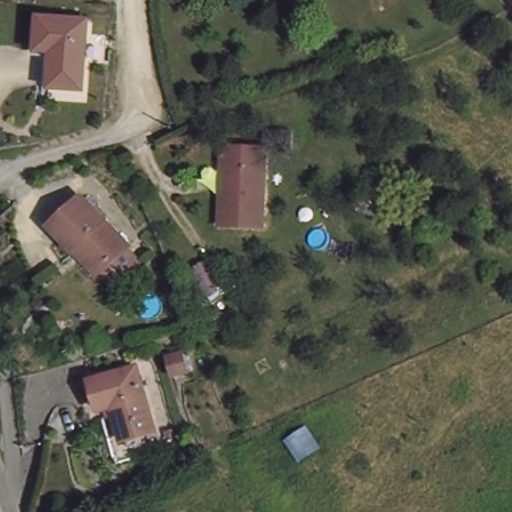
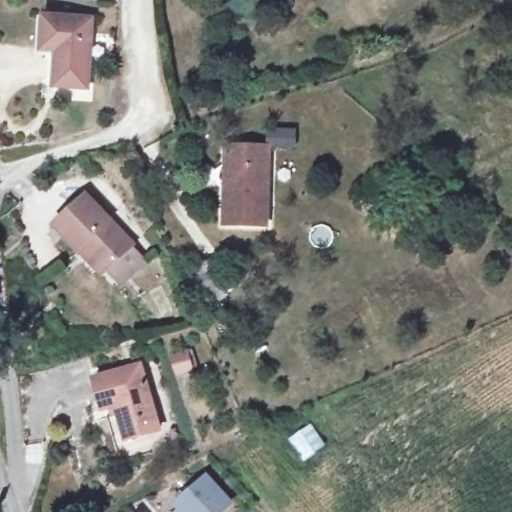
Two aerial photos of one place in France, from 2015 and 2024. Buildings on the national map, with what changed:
unchanged [(85,28),(82,94),(52,91),(55,57),(38,55),(41,25),(85,28)]
unchanged [(291,147),(265,150),(262,131),(289,128),(291,147)]
unchanged [(230,226),(223,155),(265,150),(272,223),(230,226)]
unchanged [(107,278),(97,266),(94,268),(42,212),(74,183),(126,240),(124,241),(135,254),(107,278)]
unchanged [(195,372),(182,375),(178,356),(191,353),(195,372)]
unchanged [(161,430),(130,436),(121,405),(106,407),(97,377),(143,366),(161,430)]
unchanged [(323,447),(306,456),(294,440),(311,430),(323,447)]
new [(179,512),(172,503),(206,473),(234,503),(224,512),(179,512)]

